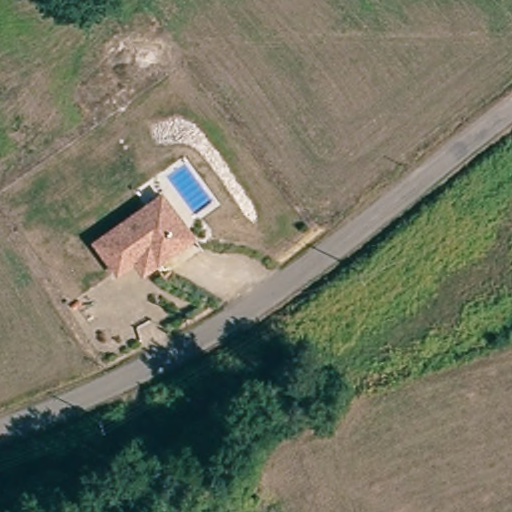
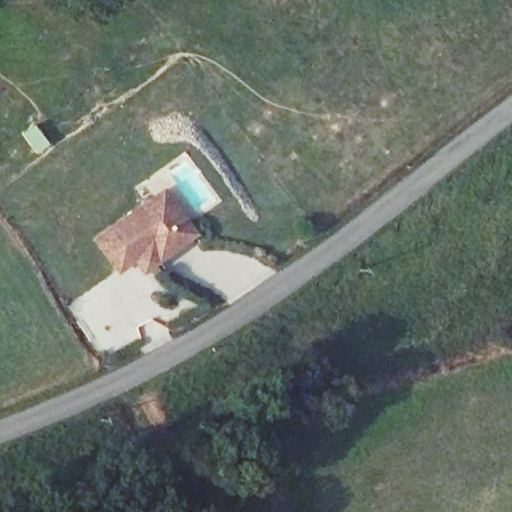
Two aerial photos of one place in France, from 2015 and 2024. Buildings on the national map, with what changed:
unchanged [(138,257),(122,270),(101,240),(100,239),(119,225),(130,217),(155,199),(167,190),(198,234),(186,242),(171,254),(163,259),(147,270),(138,257)]
unchanged [(205,469),(239,445),(259,471),(267,466),(274,478),(228,506),(205,469)]

